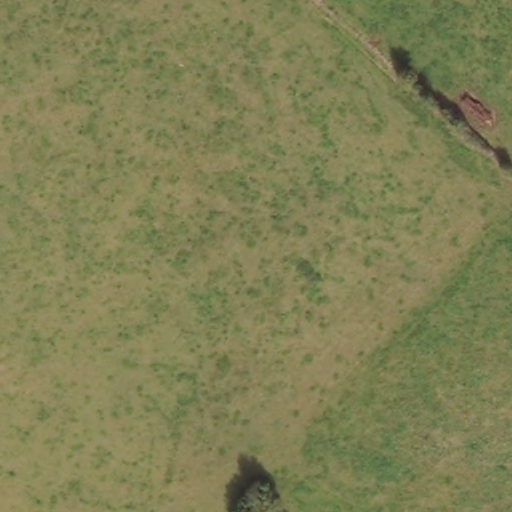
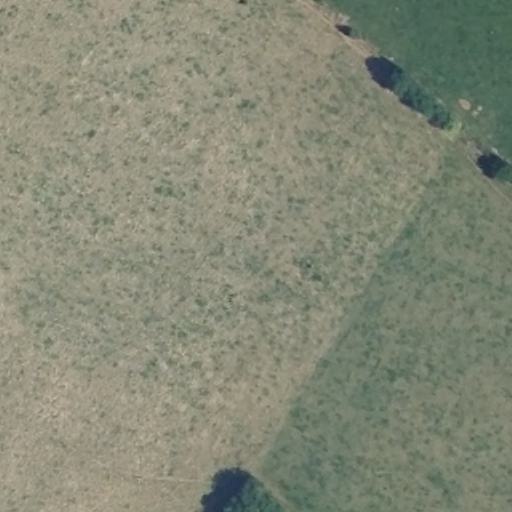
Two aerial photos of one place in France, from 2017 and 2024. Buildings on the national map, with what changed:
[]

